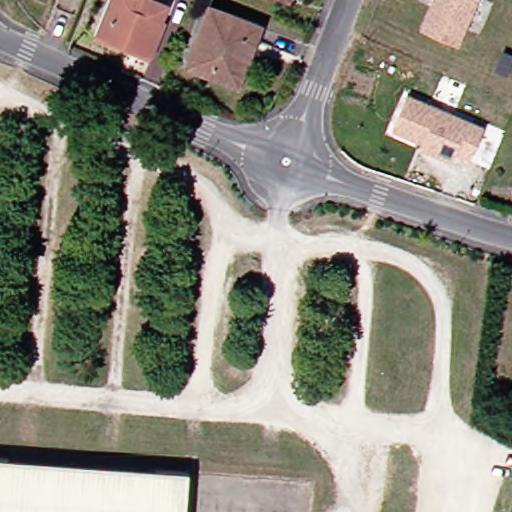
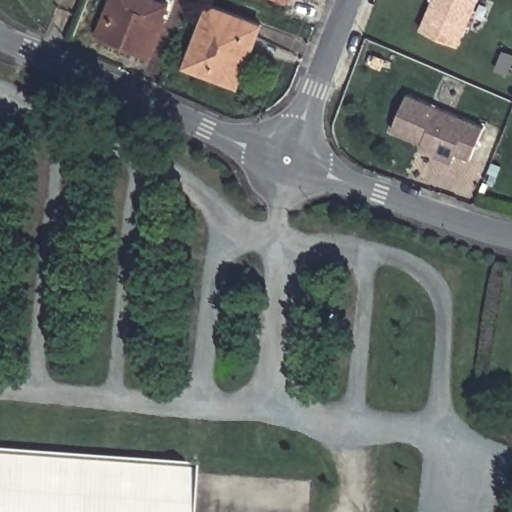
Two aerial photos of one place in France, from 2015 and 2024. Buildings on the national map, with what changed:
unchanged [(172,4),(165,22),(168,23),(155,55),(101,34),(115,0),(160,0),(172,4)]
unchanged [(435,0),(480,0),(461,45),(422,29),(435,0)]
unchanged [(261,28),(238,86),(189,68),(210,8),(261,28)]
unchanged [(421,147),(424,141),(393,128),(410,92),(486,126),(472,158),(457,152),(456,156),(453,161),(421,147)]
unchanged [(0,512),(0,458),(186,470),(183,512),(0,512)]

